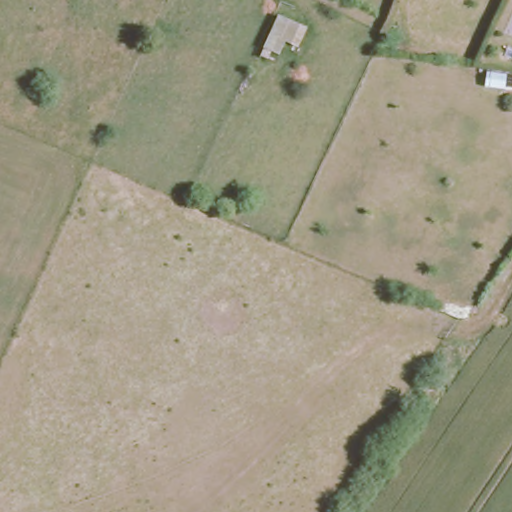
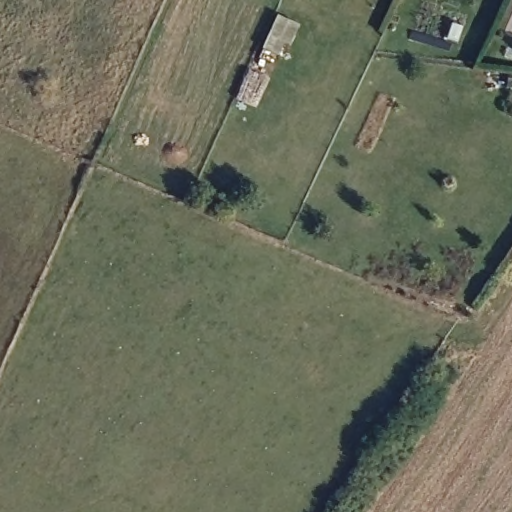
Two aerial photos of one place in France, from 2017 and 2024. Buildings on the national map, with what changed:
unchanged [(278,17),(302,27),(292,46),(283,44),(279,56),(261,51),(278,17)]

